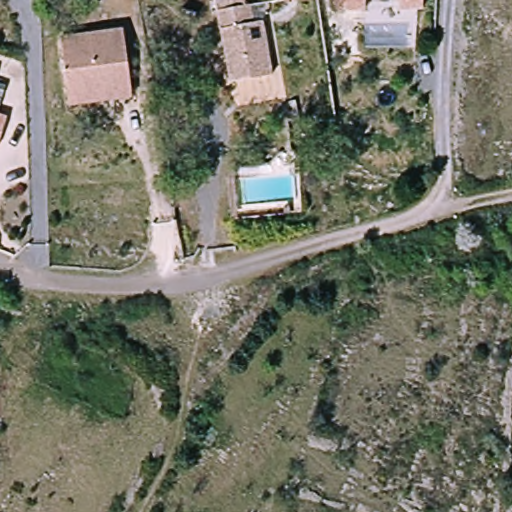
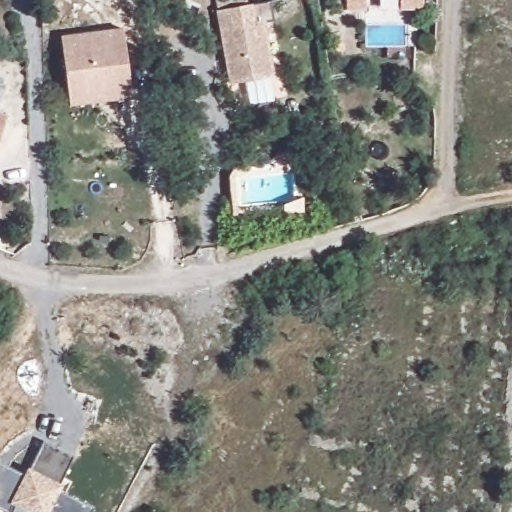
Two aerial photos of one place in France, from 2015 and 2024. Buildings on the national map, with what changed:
unchanged [(282,1),(281,0),(291,0),(282,1)]
unchanged [(367,10),(348,10),(347,0),(367,0),(367,10)]
unchanged [(423,10),(401,9),(401,0),(423,0),(423,10)]
unchanged [(252,8),(254,26),(267,25),(274,79),(231,84),(222,14),(252,8)]
unchanged [(73,96),(66,42),(129,34),(138,102),(121,105),(76,110),(73,96)]
unchanged [(195,135),(171,139),(166,101),(190,97),(195,135)]
unchanged [(6,119),(0,136),(0,116),(6,119)]
new [(8,512),(7,512),(0,508),(0,462),(23,475),(28,466),(31,468),(45,440),(76,455),(61,485),(64,486),(61,492),(93,507),(91,512),(26,512),(12,505),(8,512)]

